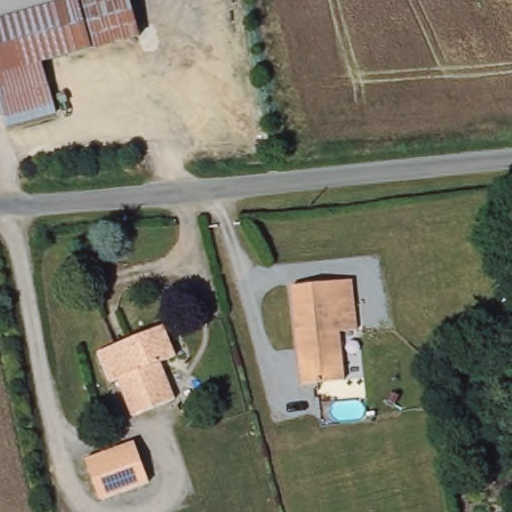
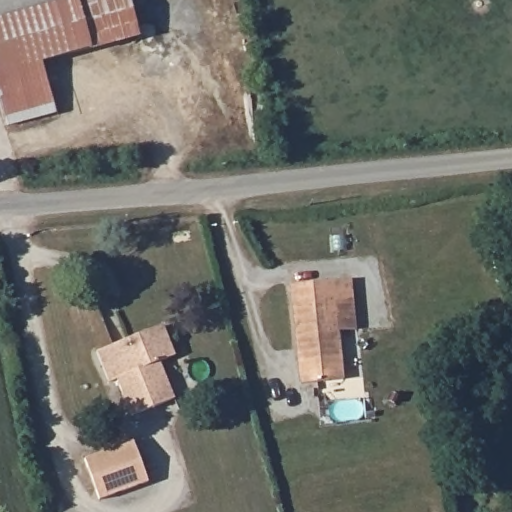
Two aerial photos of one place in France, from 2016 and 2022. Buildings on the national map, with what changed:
unchanged [(0,24),(0,0),(88,0),(0,24)]
unchanged [(42,67),(55,118),(6,132),(0,108),(0,26),(96,0),(128,0),(139,41),(42,67)]
unchanged [(351,285),(356,335),(339,337),(344,385),(301,389),(291,291),(351,285)]
unchanged [(122,379),(114,382),(102,352),(168,326),(180,355),(174,358),(189,394),(137,416),(122,379)]
unchanged [(145,469),(117,481),(101,441),(130,429),(145,469)]

